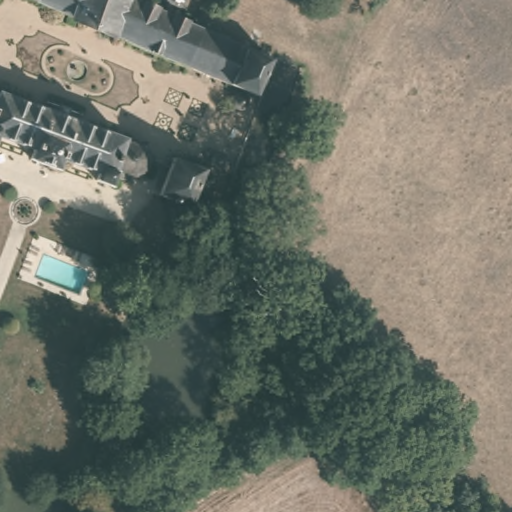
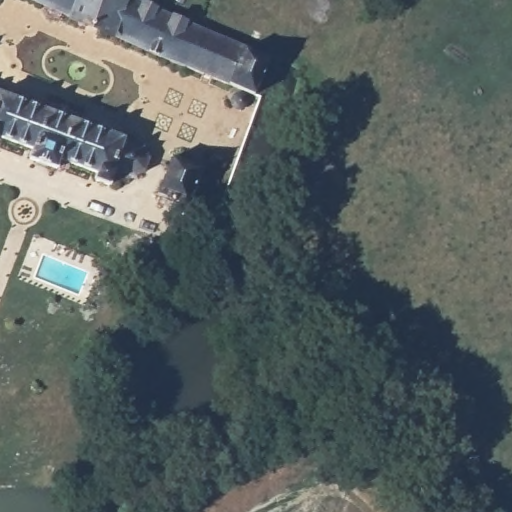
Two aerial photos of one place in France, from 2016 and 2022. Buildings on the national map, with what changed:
unchanged [(187,69),(24,0),(129,0),(205,31),(187,69)]
unchanged [(247,49),(230,87),(187,69),(205,31),(247,49)]
unchanged [(250,50),(272,61),(255,97),(230,87),(247,49),(250,50)]
unchanged [(37,113),(42,104),(71,116),(69,125),(133,154),(132,174),(126,186),(114,191),(97,186),(95,191),(82,186),(82,180),(49,167),(44,177),(19,167),(23,157),(0,148),(0,98),(37,113)]
unchanged [(187,211),(160,198),(172,167),(200,177),(187,211)]

